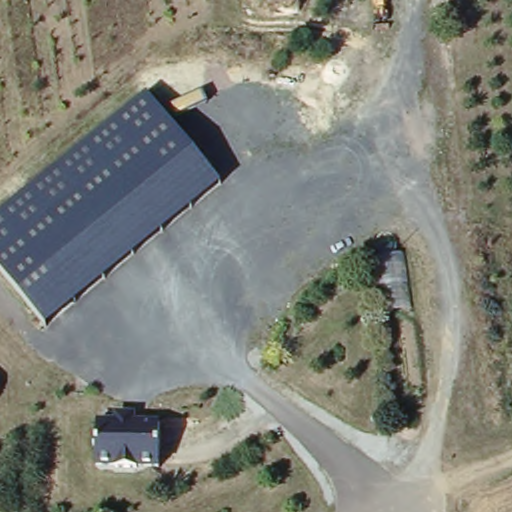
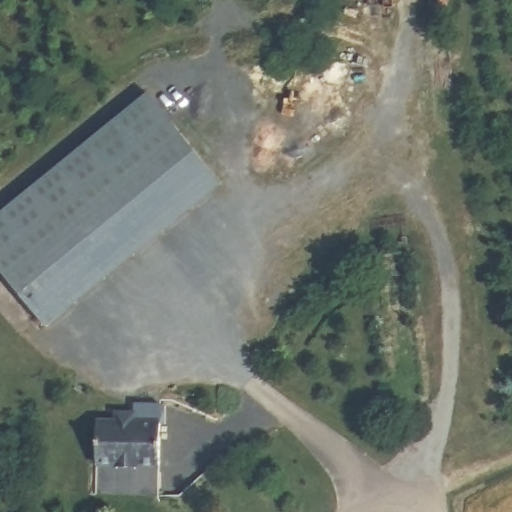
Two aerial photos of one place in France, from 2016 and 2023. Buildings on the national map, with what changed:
unchanged [(220,188),(44,333),(0,277),(0,213),(145,93),(220,188)]
unchanged [(115,423),(115,414),(133,414),(133,405),(160,405),(159,424),(157,467),(135,466),(135,469),(114,469),(114,466),(94,464),(96,422),(115,423)]

